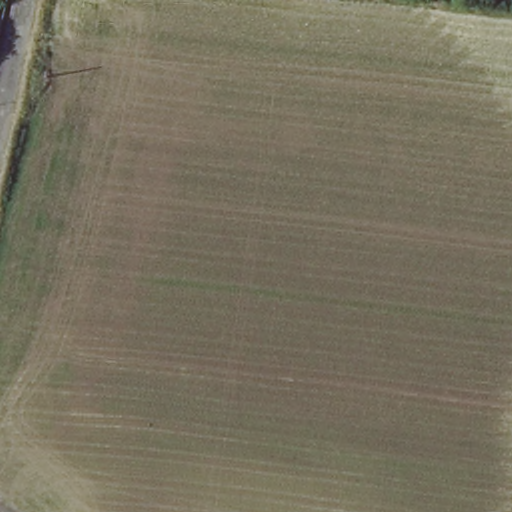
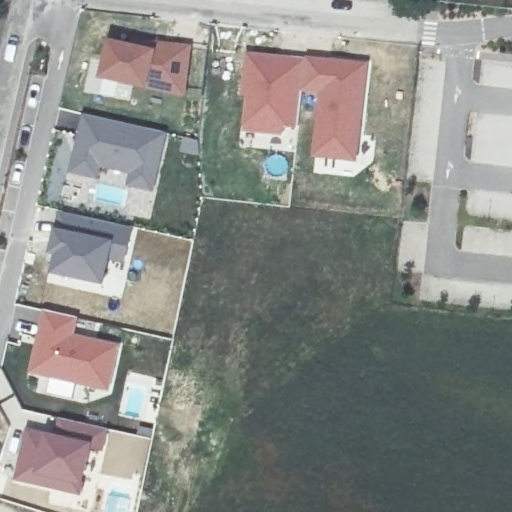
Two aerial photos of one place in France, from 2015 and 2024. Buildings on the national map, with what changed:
new [(109,38),(156,45),(156,39),(193,43),(186,98),(101,80),(109,38)]
new [(244,49),(291,55),(371,60),(360,164),(310,158),(314,99),(303,96),(299,129),(286,128),(285,136),(241,130),(244,95),(238,94),(244,49)]
new [(58,107),(168,131),(153,194),(125,188),(128,174),(103,169),(99,181),(66,173),(76,130),(54,125),(58,107)]
new [(58,209),(133,227),(124,263),(110,260),(105,285),(49,272),(52,254),(48,254),(58,209)]
new [(43,309),(79,318),(76,334),(121,343),(111,393),(78,386),(74,400),(44,393),(48,379),(27,374),(43,309)]
new [(24,426),(54,433),(57,417),(111,430),(104,453),(90,450),(81,496),(12,480),(24,426)]
new [(104,453),(111,430),(151,437),(144,474),(135,472),(133,479),(100,473),(104,453)]

